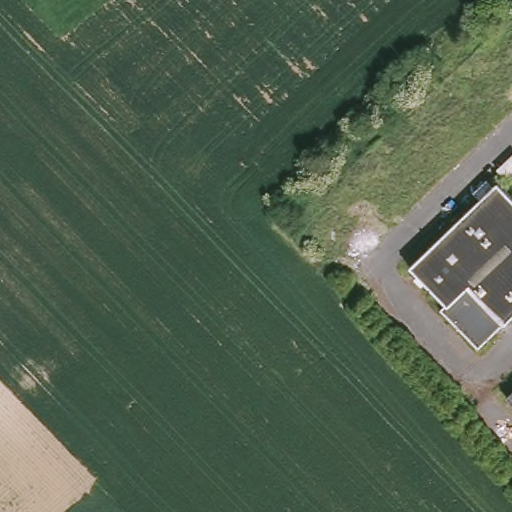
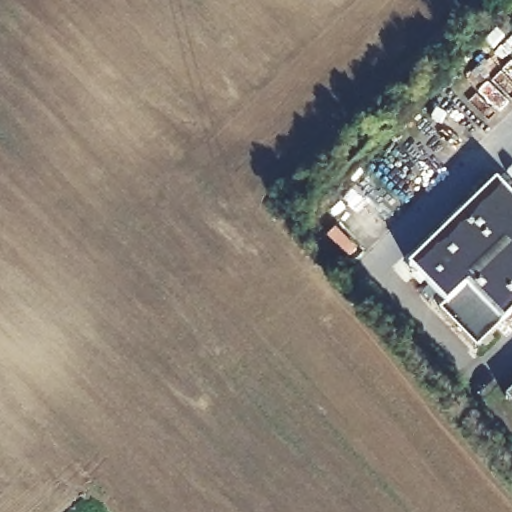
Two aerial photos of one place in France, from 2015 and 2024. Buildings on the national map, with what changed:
unchanged [(497,182),(512,198),(512,316),(477,349),(442,313),(448,307),(409,267),(497,182)]
unchanged [(512,393),(512,401),(508,397),(512,393)]

